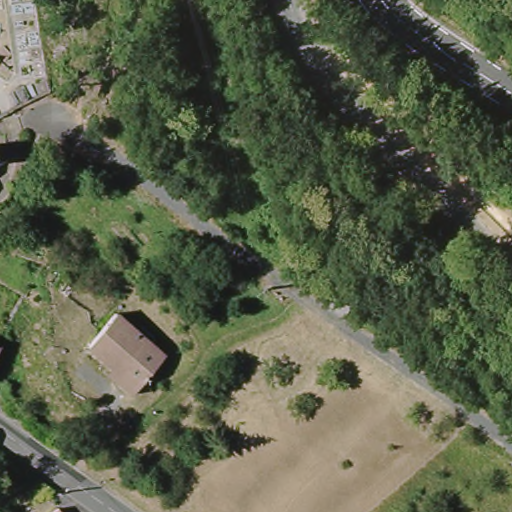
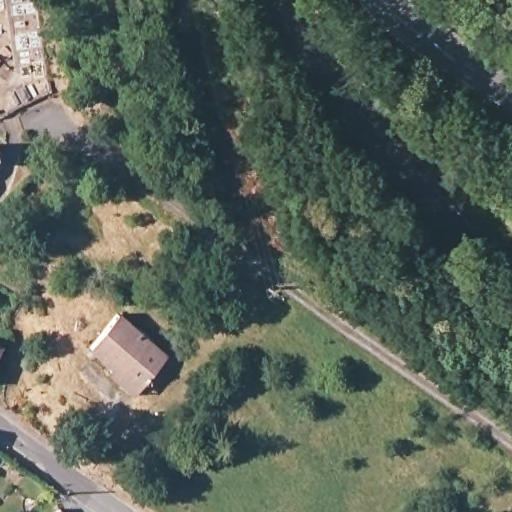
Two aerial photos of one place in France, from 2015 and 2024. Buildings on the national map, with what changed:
unchanged [(0,149),(0,147),(1,148),(0,149)]
unchanged [(170,354),(147,387),(95,350),(120,317),(170,354)]

